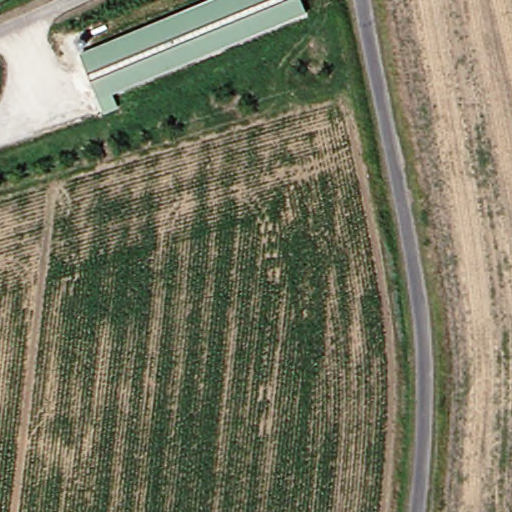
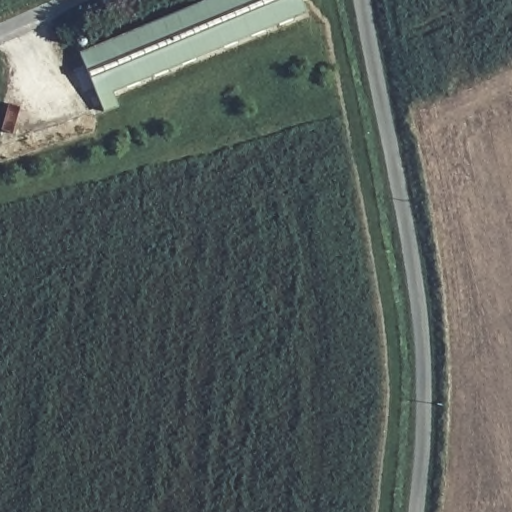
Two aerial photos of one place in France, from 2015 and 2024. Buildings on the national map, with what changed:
unchanged [(204,0),(321,0),(109,92),(115,106),(101,112),(76,55),(204,0)]

